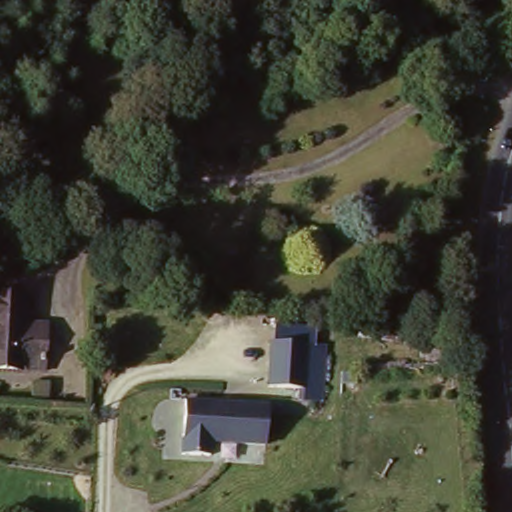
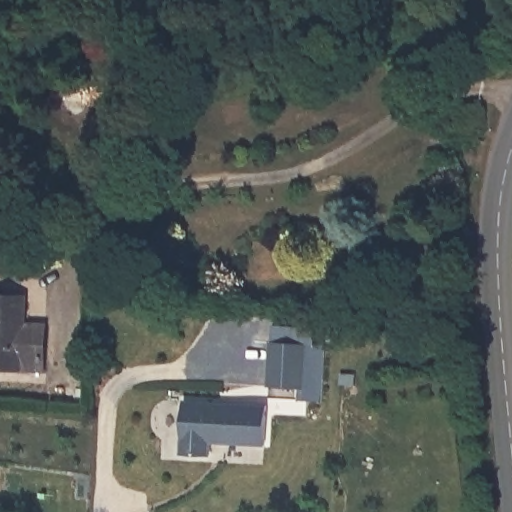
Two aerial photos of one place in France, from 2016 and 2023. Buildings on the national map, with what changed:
unchanged [(26,295),(30,295),(24,333),(44,336),(40,387),(0,382),(0,292),(26,295)]
unchanged [(265,388),(266,340),(304,345),(301,388),(265,388)]
unchanged [(209,445),(209,457),(178,455),(182,403),(264,405),(262,446),(209,445)]

